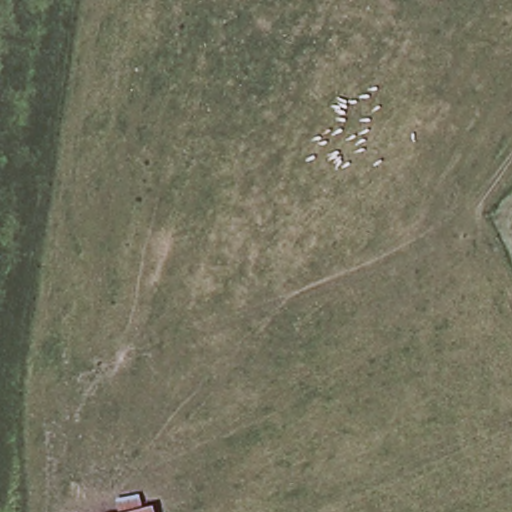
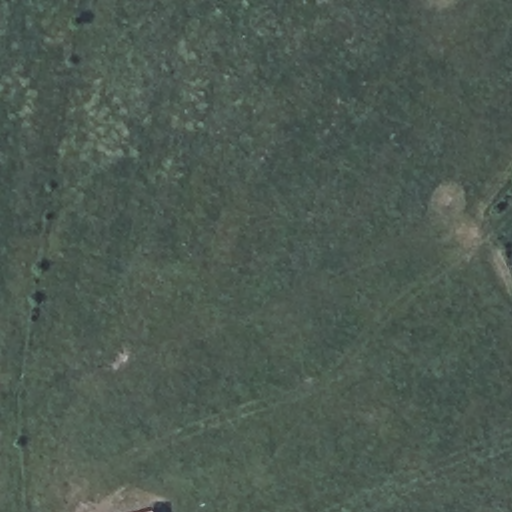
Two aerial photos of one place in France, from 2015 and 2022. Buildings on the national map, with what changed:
unchanged [(151,512),(138,512),(151,509),(151,512)]

